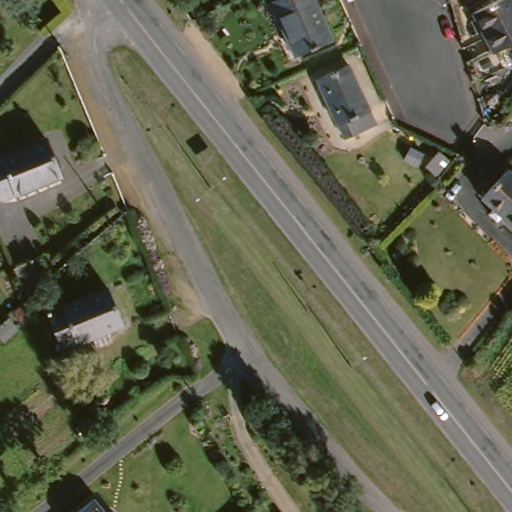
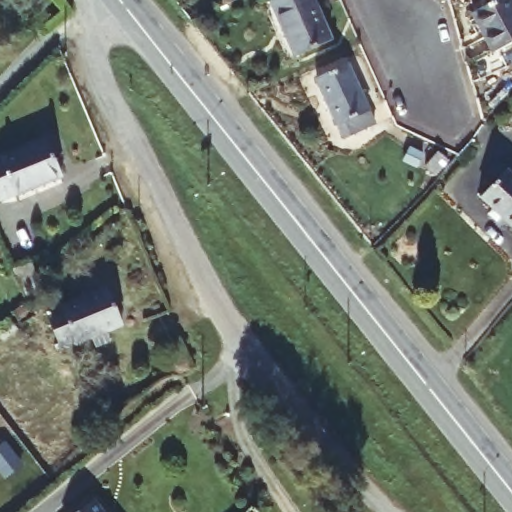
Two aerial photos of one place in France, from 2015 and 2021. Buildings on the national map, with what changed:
unchanged [(334,35),(301,49),(277,0),(317,0),(334,35)]
unchanged [(512,38),(488,50),(468,10),(488,0),(510,0),(512,3),(512,38)]
unchanged [(376,116),(346,128),(320,72),(349,60),(376,116)]
unchanged [(45,132),(59,168),(4,192),(1,187),(0,184),(0,152),(45,132)]
unchanged [(512,225),(484,196),(511,169),(512,171),(512,225)]
unchanged [(0,187),(0,184),(1,187),(0,187)]
unchanged [(15,292),(1,259),(19,252),(29,279),(15,292)]
unchanged [(98,281),(114,319),(57,344),(41,308),(98,281)]
unchanged [(104,512),(80,512),(96,501),(104,512)]

